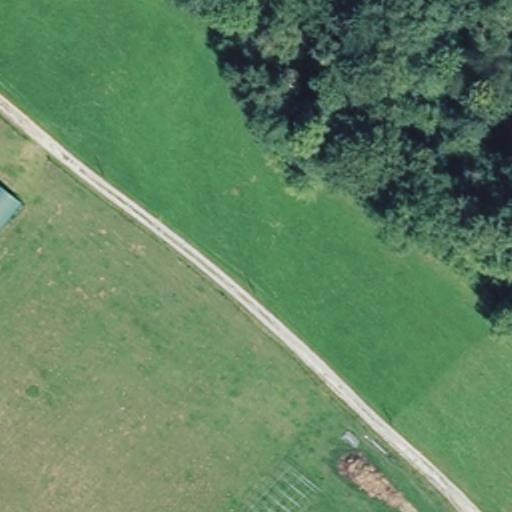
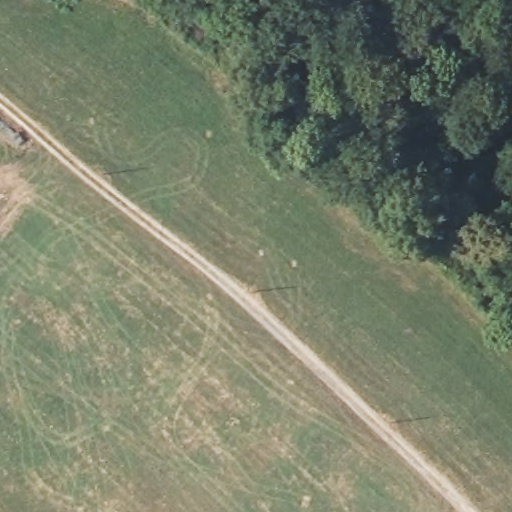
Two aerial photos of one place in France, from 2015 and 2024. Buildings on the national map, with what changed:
demolished [(20,202),(0,227),(0,185),(20,202)]

